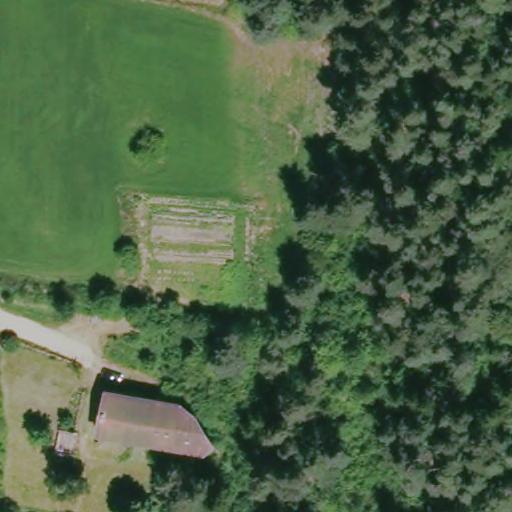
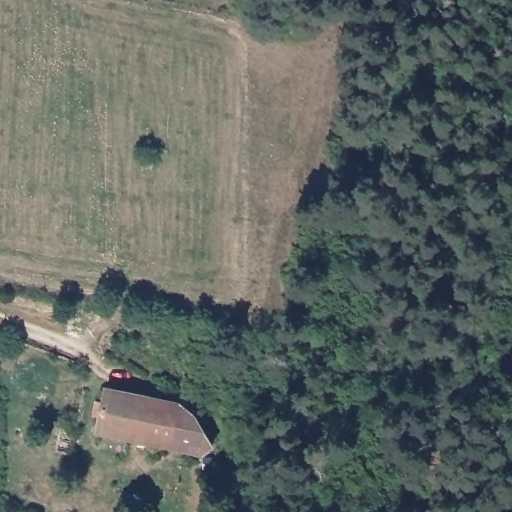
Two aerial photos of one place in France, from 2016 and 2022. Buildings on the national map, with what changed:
unchanged [(95,432),(97,419),(87,417),(89,395),(100,397),(101,379),(114,386),(184,403),(173,451),(95,432)]
unchanged [(203,461),(173,451),(184,403),(202,420),(210,439),(214,451),(203,461)]

